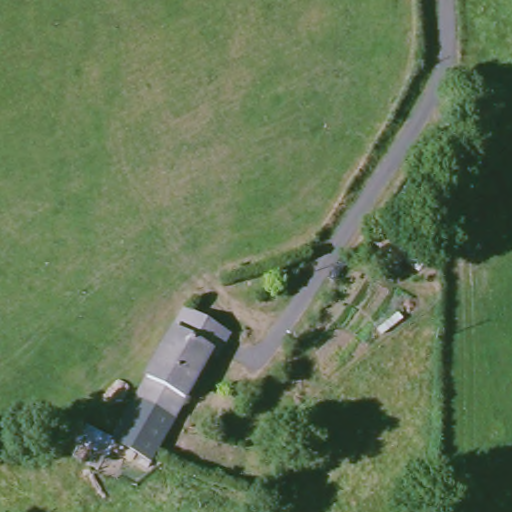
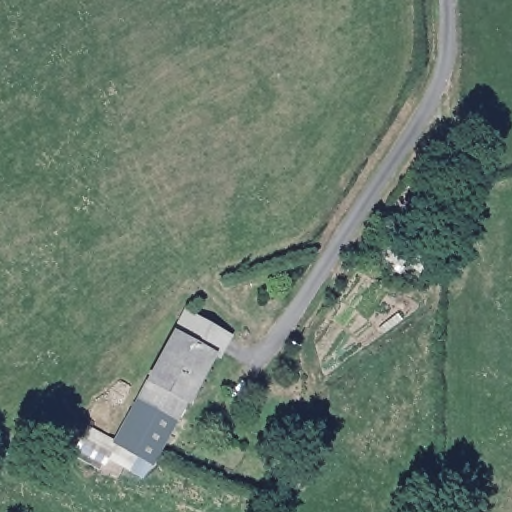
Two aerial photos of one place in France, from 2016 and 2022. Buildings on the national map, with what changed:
unchanged [(225,319),(157,445),(153,450),(117,430),(190,300),(225,319)]

